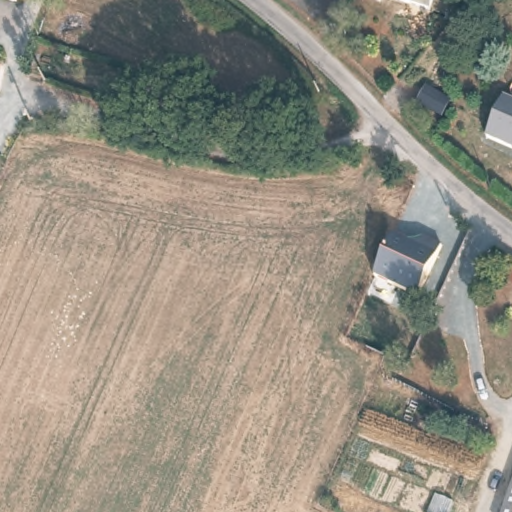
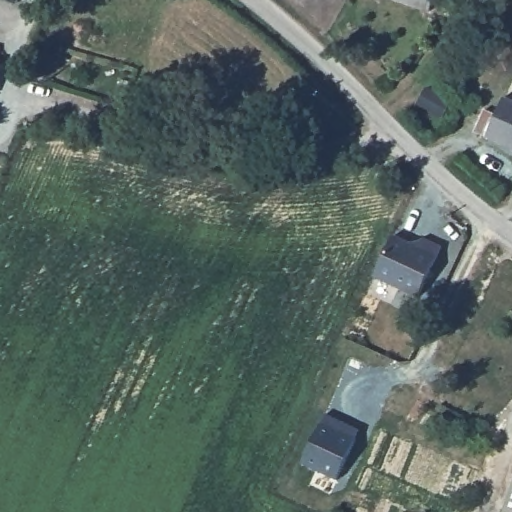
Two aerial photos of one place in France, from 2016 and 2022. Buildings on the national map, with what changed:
unchanged [(19,0),(25,0),(24,1),(19,0)]
unchanged [(431,13),(387,0),(434,0),(431,13)]
unchanged [(0,82),(0,59),(4,59),(0,82)]
unchanged [(512,98),(512,145),(482,130),(500,92),(512,98)]
unchanged [(413,244),(423,239),(439,246),(417,297),(375,278),(394,235),(413,244)]
new [(336,478),(300,463),(319,422),(325,413),(359,429),(356,438),(336,478)]
unchanged [(498,512),(512,477),(512,512),(498,512)]

